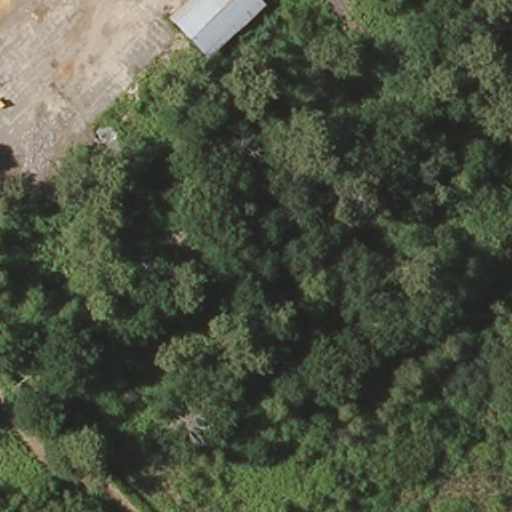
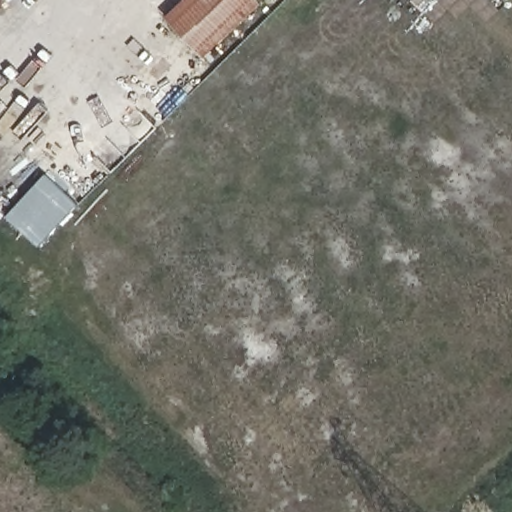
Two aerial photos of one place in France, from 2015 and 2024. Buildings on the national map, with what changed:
unchanged [(260,7),(205,60),(166,19),(185,0),(254,0),(260,7)]
new [(76,208),(38,247),(6,216),(44,177),(76,208)]

